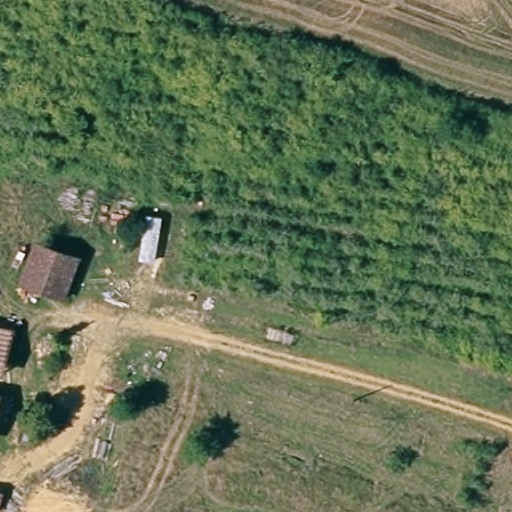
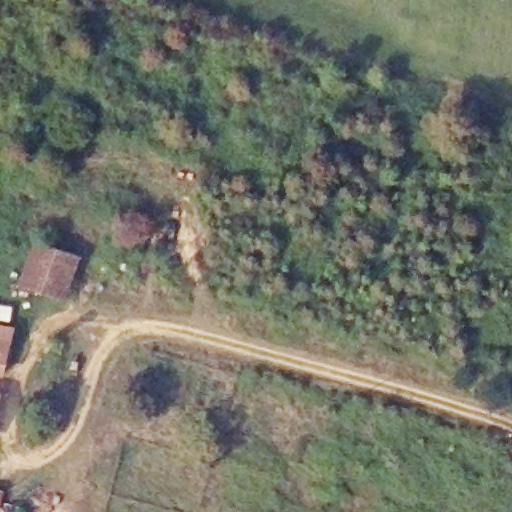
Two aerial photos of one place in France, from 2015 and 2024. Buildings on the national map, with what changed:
unchanged [(71,293),(26,280),(39,238),(85,250),(71,293)]
unchanged [(5,370),(0,369),(0,323),(10,325),(5,370)]
unchanged [(5,512),(0,512),(0,498),(6,499),(5,512)]

